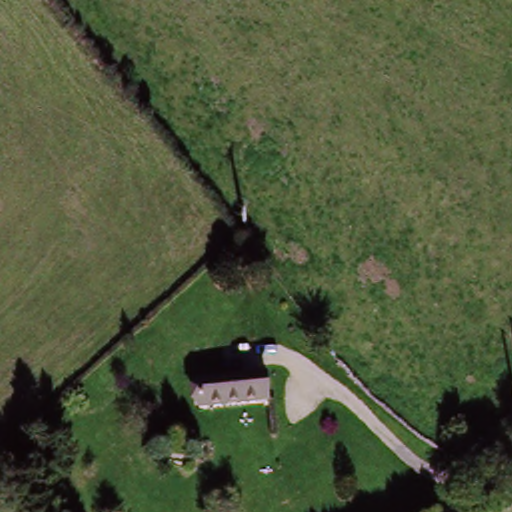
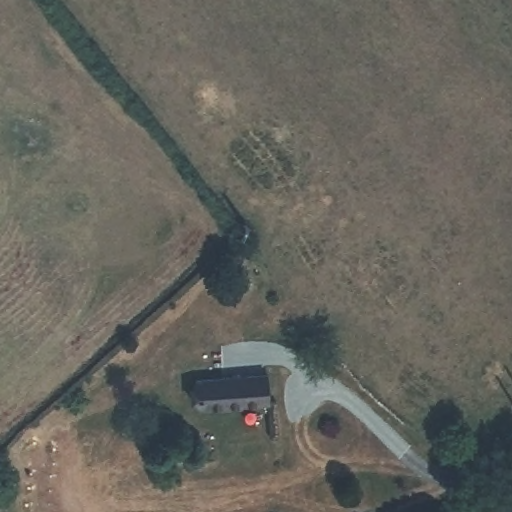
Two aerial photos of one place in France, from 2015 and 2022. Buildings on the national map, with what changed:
unchanged [(260,401),(194,407),(191,380),(258,374),(260,401)]

